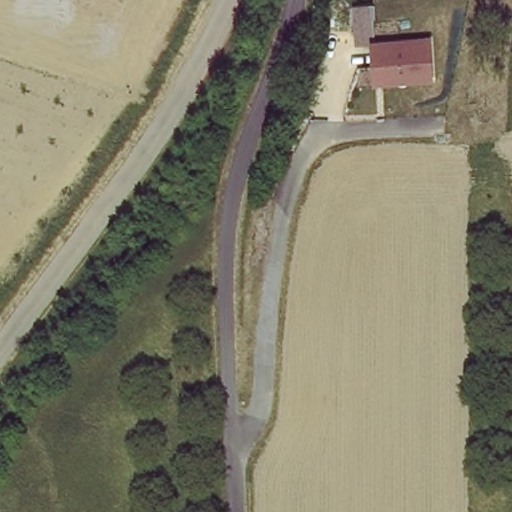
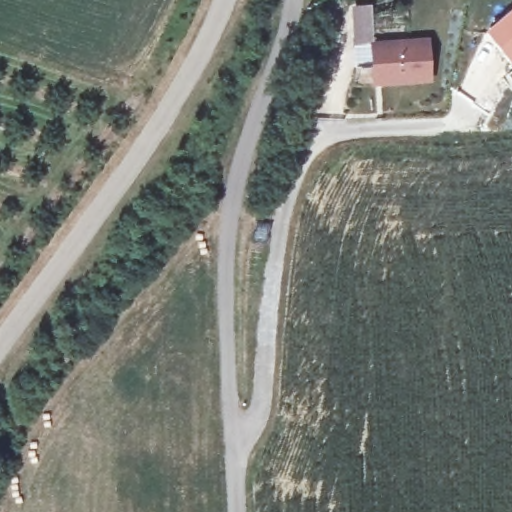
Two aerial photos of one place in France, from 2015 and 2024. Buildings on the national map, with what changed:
new [(508,69),(486,36),(512,14),(512,64),(508,69)]
unchanged [(425,81),(368,81),(366,41),(422,38),(425,81)]

